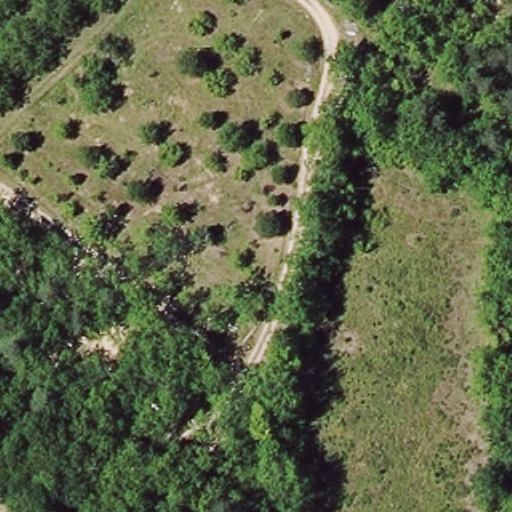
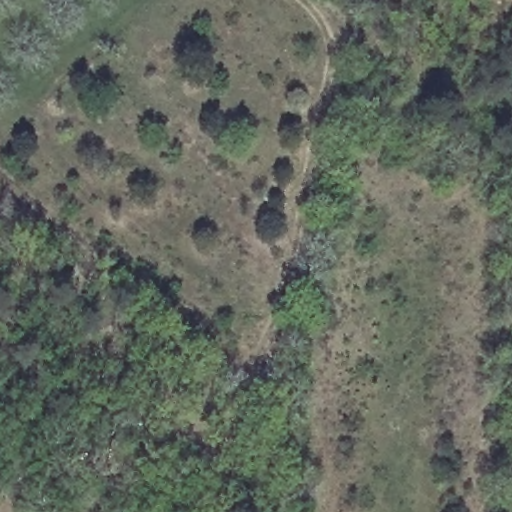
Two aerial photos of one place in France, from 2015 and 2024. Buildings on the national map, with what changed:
[]

